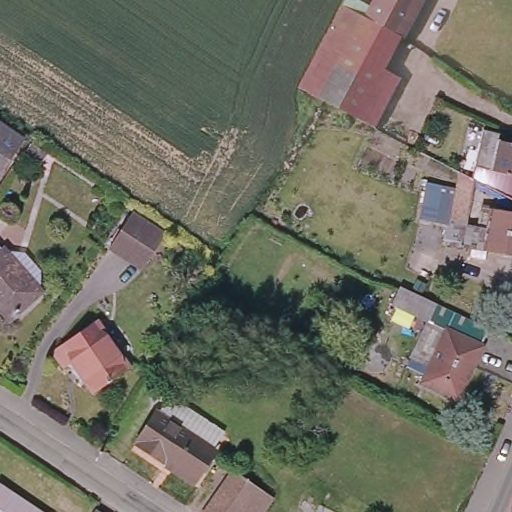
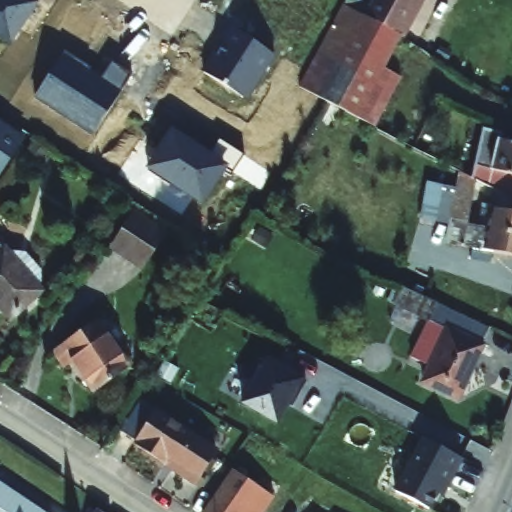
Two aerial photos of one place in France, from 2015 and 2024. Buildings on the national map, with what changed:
new [(38,2),(10,46),(0,40),(0,0),(34,0),(38,2)]
unchanged [(412,18),(415,20),(407,35),(404,34),(369,16),(377,0),(421,0),(412,18)]
unchanged [(406,76),(379,126),(303,86),(347,4),(369,16),(404,34),(399,43),(388,67),(406,76)]
new [(247,100),(201,70),(231,26),(275,56),(247,100)]
new [(34,98),(63,53),(102,78),(113,62),(132,75),(92,136),(34,98)]
unchanged [(28,135),(0,175),(0,115),(28,135)]
unchanged [(506,128),(504,135),(512,137),(512,191),(479,174),(478,174),(489,125),(506,128)]
new [(172,128),(210,154),(219,140),(243,155),(232,172),(226,169),(203,205),(146,168),(172,128)]
unchanged [(53,148),(45,159),(29,149),(37,138),(53,148)]
unchanged [(512,205),(512,250),(490,246),(489,254),(475,251),(476,243),(451,239),(455,218),(425,213),(432,177),(462,183),(464,166),(478,174),(479,174),(472,219),(483,220),(486,200),(502,203),(512,205)]
unchanged [(122,241),(144,209),(171,227),(150,260),(122,241)]
unchanged [(0,312),(0,250),(5,255),(25,257),(41,275),(41,296),(10,323),(0,312)]
unchanged [(488,340),(464,393),(428,376),(435,361),(416,352),(432,315),(396,298),(406,281),(442,297),(495,322),(487,339),(488,340)]
unchanged [(78,360),(69,366),(58,351),(101,323),(133,368),(100,391),(78,360)]
new [(287,405),(277,424),(242,404),(267,361),(306,383),(298,397),(292,408),(287,405)]
unchanged [(221,445),(202,473),(174,455),(170,460),(140,440),(162,407),(164,408),(175,392),(187,400),(230,428),(226,433),(219,444),(221,445)]
new [(423,437),(463,457),(448,485),(443,482),(429,508),(396,491),(423,437)]
unchanged [(274,496),(263,512),(205,512),(234,469),(274,496)]
unchanged [(37,512),(0,512),(0,488),(37,512)]
unchanged [(101,512),(93,512),(96,508),(101,512)]

